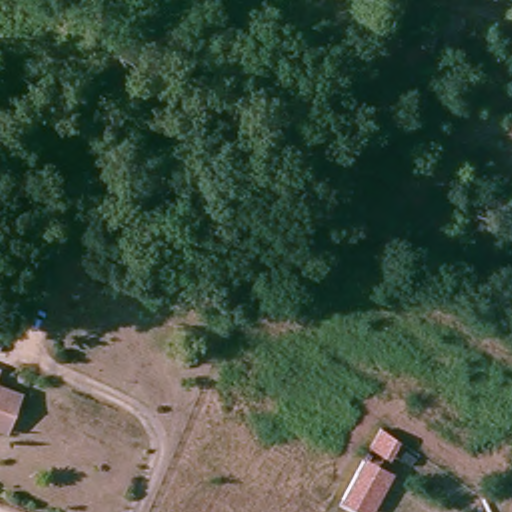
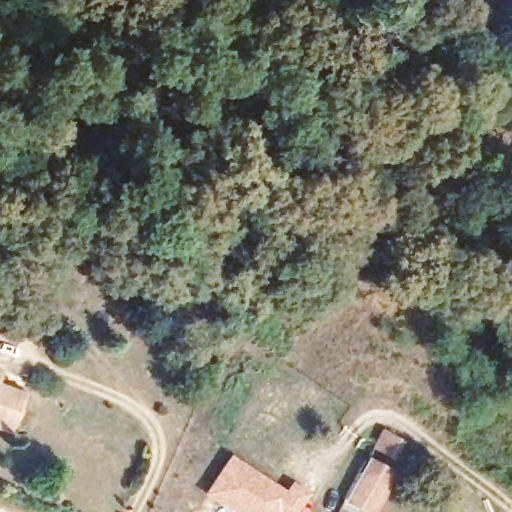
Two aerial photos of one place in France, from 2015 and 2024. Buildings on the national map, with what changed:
unchanged [(0,371),(0,364),(2,365),(0,371)]
unchanged [(10,427),(0,423),(0,380),(24,389),(10,427)]
new [(282,488),(287,479),(307,493),(295,512),(226,512),(201,495),(227,453),(282,488)]
unchanged [(363,512),(338,499),(363,455),(392,470),(371,512),(363,512)]

